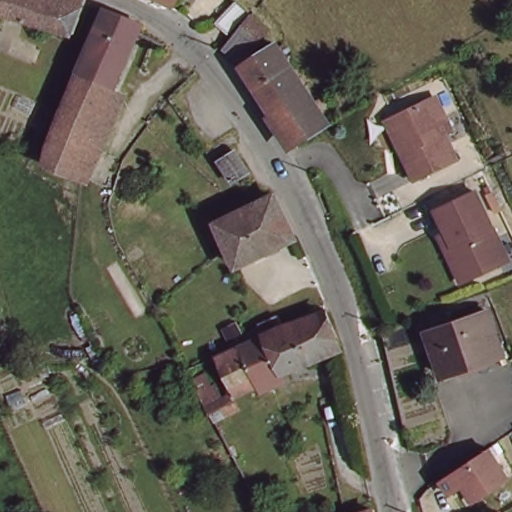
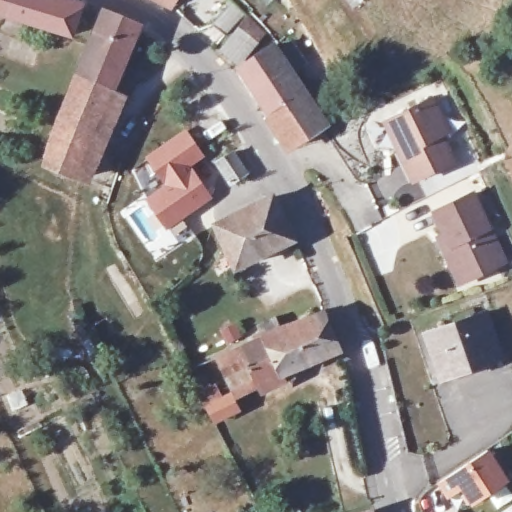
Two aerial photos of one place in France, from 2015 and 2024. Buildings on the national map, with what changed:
unchanged [(12,0),(5,20),(5,23),(0,21),(0,0),(12,0)]
unchanged [(5,20),(12,0),(45,0),(37,29),(5,20)]
unchanged [(74,40),(37,29),(45,0),(51,0),(81,11),(74,40)]
unchanged [(152,0),(160,0),(158,3),(152,0)]
unchanged [(238,16),(218,36),(203,22),(225,0),(238,16)]
unchanged [(123,18),(136,25),(115,80),(85,157),(91,160),(83,181),(46,164),(67,113),(94,46),(107,13),(123,18)]
unchanged [(258,36),(248,45),(231,63),(218,49),(245,22),(258,36)]
unchanged [(300,90),(320,121),(285,145),(233,67),(267,45),(268,44),(300,90)]
unchanged [(415,178),(395,136),(386,120),(394,116),(434,96),(443,114),(450,129),(443,133),(456,158),(415,178)]
new [(186,129),(206,157),(191,168),(211,195),(165,228),(145,200),(166,185),(147,159),(186,129)]
unchanged [(247,174),(231,184),(218,161),(233,152),(247,174)]
unchanged [(453,268),(443,248),(446,246),(441,234),(445,232),(435,212),(472,194),(495,239),(505,261),(496,265),(470,277),(460,282),(453,268)]
unchanged [(291,241),(235,267),(227,248),(218,227),(245,214),(272,202),(291,241)]
unchanged [(338,355),(272,382),(277,396),(262,402),(255,389),(239,394),(225,356),(265,339),(261,329),(280,322),(285,332),(323,316),(338,355)]
unchanged [(498,358),(440,381),(423,339),(481,316),(498,358)]
unchanged [(238,411),(213,424),(206,412),(232,399),(238,411)]
unchanged [(485,448),(505,476),(473,500),(462,484),(448,494),(440,481),(485,448)]
unchanged [(501,512),(490,512),(498,507),(501,512)]

